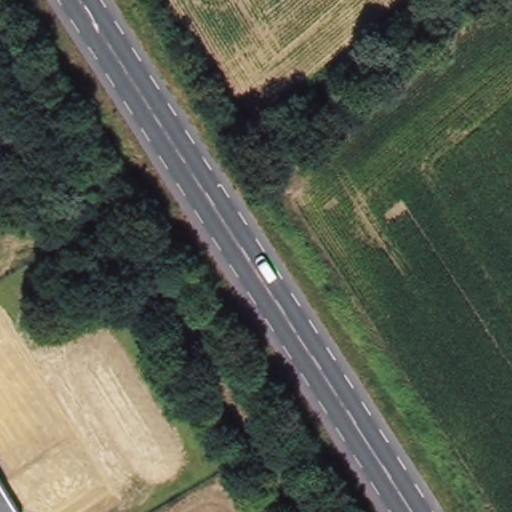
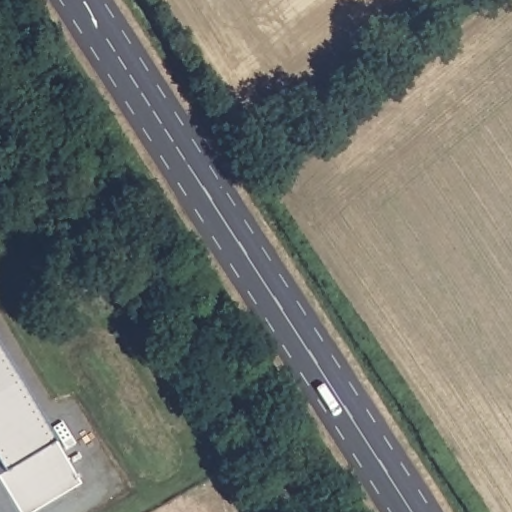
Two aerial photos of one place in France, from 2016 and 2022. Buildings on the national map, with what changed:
new [(0,352),(54,442),(78,484),(35,512),(16,512),(0,485),(0,352)]
unchanged [(0,485),(16,512),(0,512),(0,485)]

